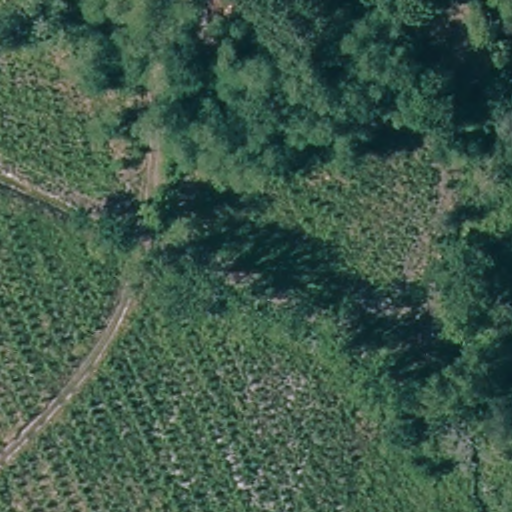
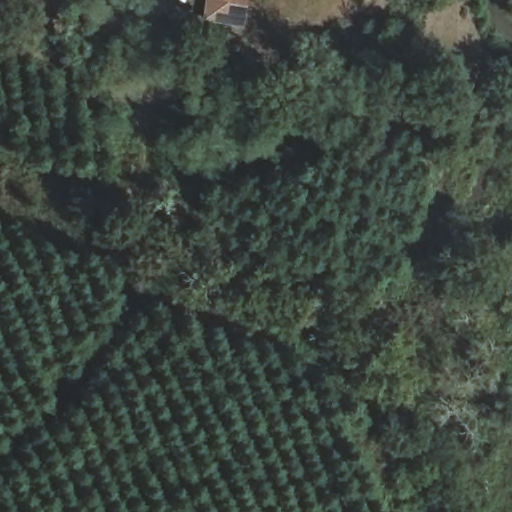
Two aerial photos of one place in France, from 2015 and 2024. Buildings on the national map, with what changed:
unchanged [(249,0),(248,15),(225,15),(224,0),(249,0)]

